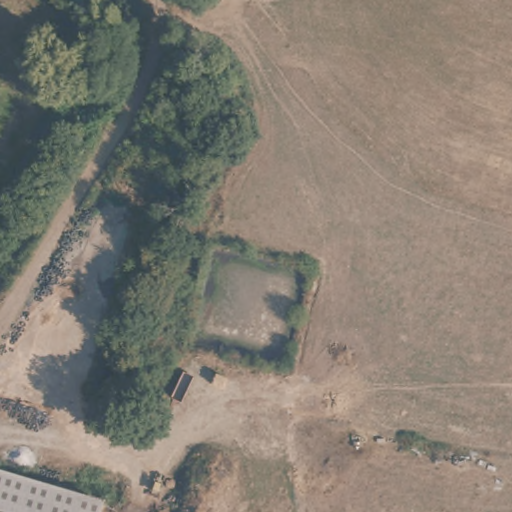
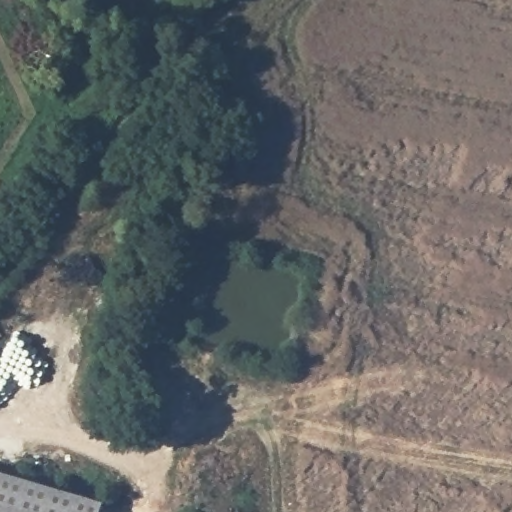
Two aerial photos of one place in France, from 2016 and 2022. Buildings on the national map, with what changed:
unchanged [(99,512),(0,512),(0,476),(101,503),(99,512)]

